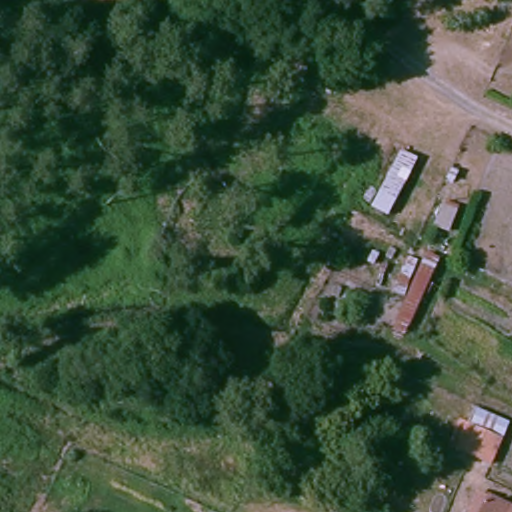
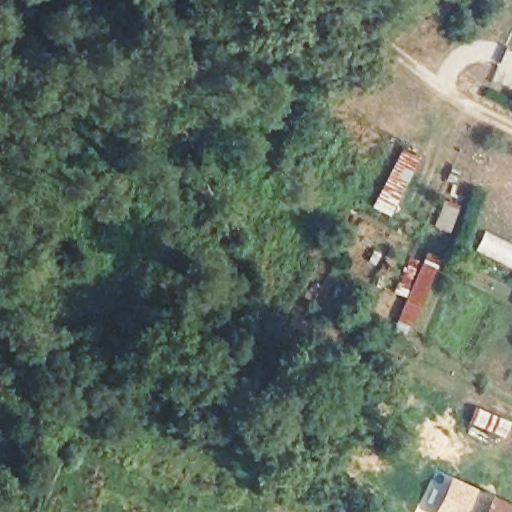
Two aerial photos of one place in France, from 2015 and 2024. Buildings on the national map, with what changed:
unchanged [(416,159),(387,218),(367,207),(397,152),(416,159)]
unchanged [(453,207),(448,220),(444,226),(434,221),(438,214),(443,202),(453,207)]
unchanged [(425,262),(435,267),(406,330),(396,326),(425,262)]
unchanged [(459,417),(491,433),(507,440),(494,464),(480,457),(448,441),(459,417)]
new [(487,495),(512,508),(512,512),(502,512),(481,502),(476,512),(431,512),(449,476),(487,495)]
unchanged [(502,512),(476,512),(481,502),(502,512)]

